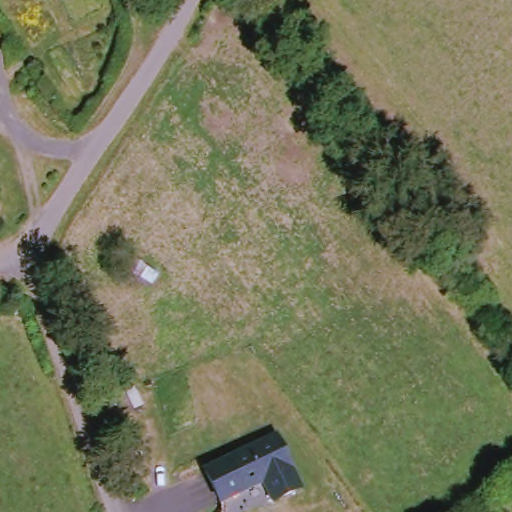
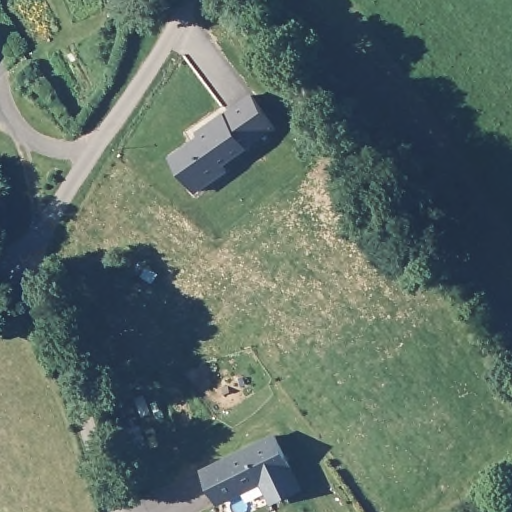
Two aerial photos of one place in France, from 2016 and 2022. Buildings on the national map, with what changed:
new [(278,129),(247,149),(225,165),(230,172),(197,193),(171,157),(198,138),(195,133),(224,111),(251,94),(278,129)]
unchanged [(202,468),(278,433),(302,489),(272,504),(262,483),(218,504),(202,468)]

